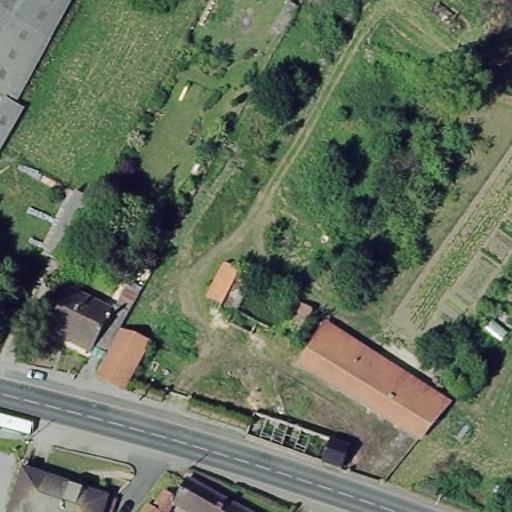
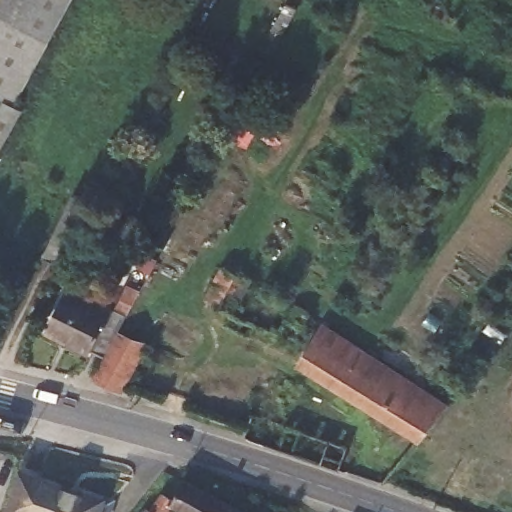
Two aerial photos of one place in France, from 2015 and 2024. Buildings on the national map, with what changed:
unchanged [(22,105),(0,143),(0,102),(4,95),(0,93),(0,0),(68,0),(13,100),(22,105)]
unchanged [(64,266),(42,255),(73,193),(93,202),(95,203),(64,266)]
unchanged [(233,309),(205,294),(223,261),(250,275),(233,309)]
unchanged [(91,344),(90,347),(45,325),(65,285),(109,308),(112,303),(115,304),(123,285),(127,278),(140,285),(137,292),(104,351),(91,344)]
unchanged [(425,432),(418,439),(298,366),(323,324),(334,332),(345,339),(363,351),(447,405),(425,432)]
unchanged [(121,385),(95,374),(120,328),(145,339),(121,385)]
unchanged [(347,442),(339,465),(244,432),(246,426),(252,409),(347,442)]
unchanged [(106,509),(98,507),(96,512),(39,512),(29,509),(28,512),(2,512),(7,498),(19,459),(112,491),(106,509)]
unchanged [(178,495),(189,475),(259,512),(203,512),(178,499),(168,512),(143,512),(152,501),(157,504),(168,488),(178,495)]

